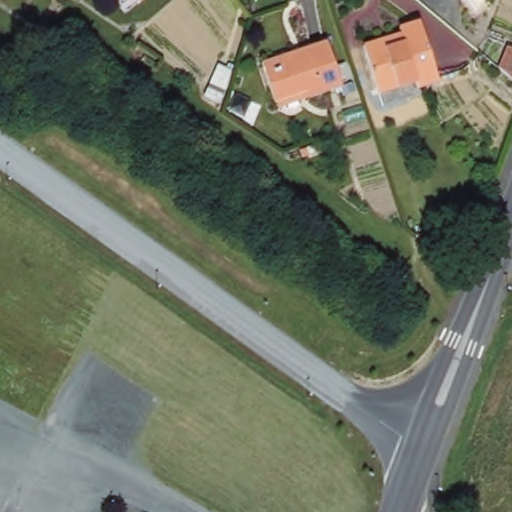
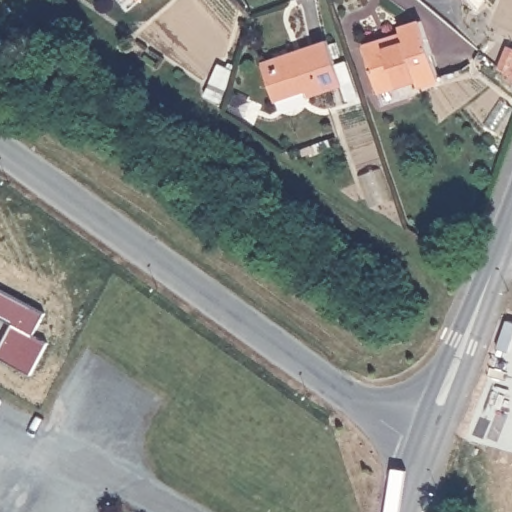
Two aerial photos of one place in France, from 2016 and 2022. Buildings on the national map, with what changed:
unchanged [(397,35),(394,28),(414,20),(434,79),(416,86),(413,79),(374,94),(359,48),(397,35)]
unchanged [(322,40),(338,85),(273,109),(258,64),(322,40)]
new [(0,346),(12,324),(0,318),(0,290),(44,314),(32,336),(46,344),(30,374),(0,358),(0,346)]

